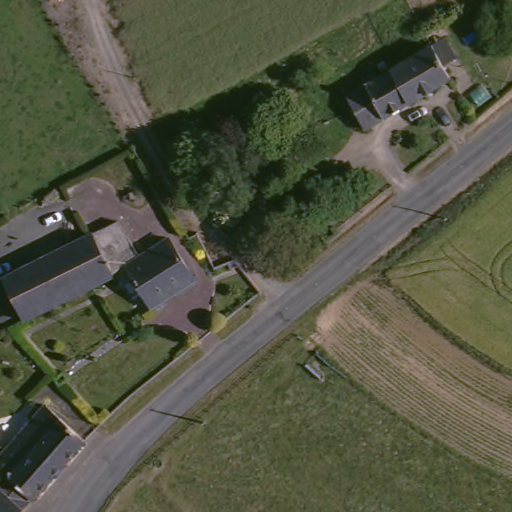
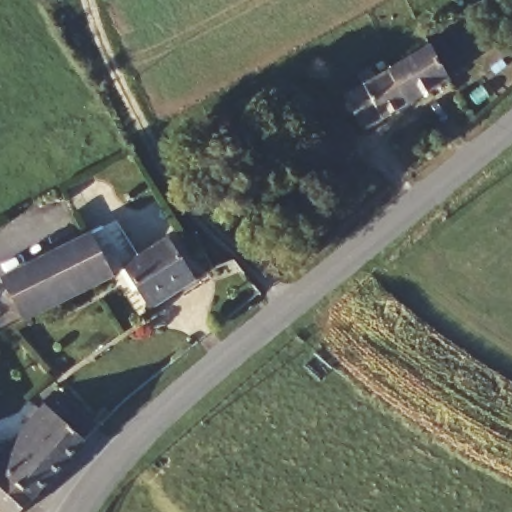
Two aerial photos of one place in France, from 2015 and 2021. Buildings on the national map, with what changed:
unchanged [(375,130),(357,102),(372,92),(363,78),(375,69),(382,79),(433,44),(454,76),(390,119),(380,126),(375,130)]
unchanged [(124,225),(143,263),(129,269),(118,274),(115,267),(98,235),(124,225)]
unchanged [(26,315),(7,275),(15,272),(77,244),(98,235),(115,267),(118,274),(96,284),(26,315)]
unchanged [(143,263),(172,249),(191,282),(148,305),(129,269),(143,263)]
unchanged [(11,512),(0,501),(0,442),(4,440),(11,451),(36,432),(27,421),(44,407),(52,417),(61,410),(91,444),(29,512),(11,512)]

